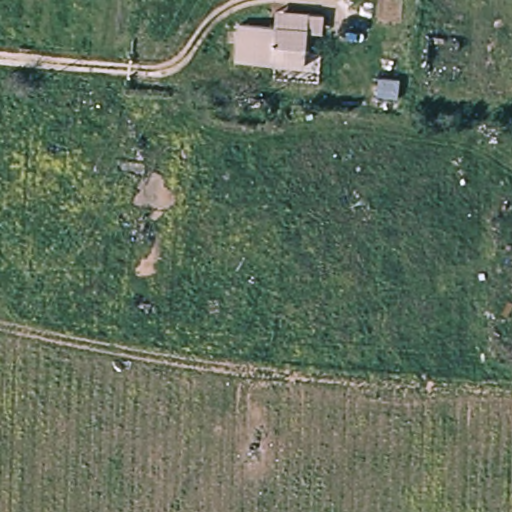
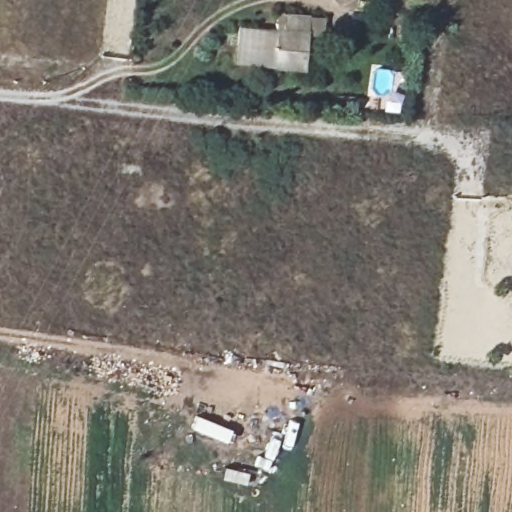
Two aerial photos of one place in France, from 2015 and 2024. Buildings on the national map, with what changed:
unchanged [(308,37),(304,74),(236,67),(239,29),(308,37)]

